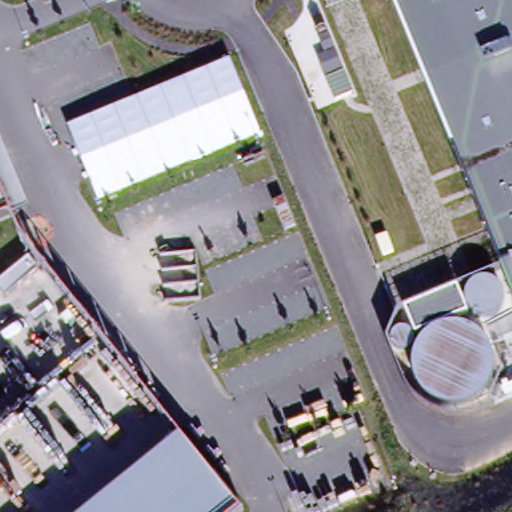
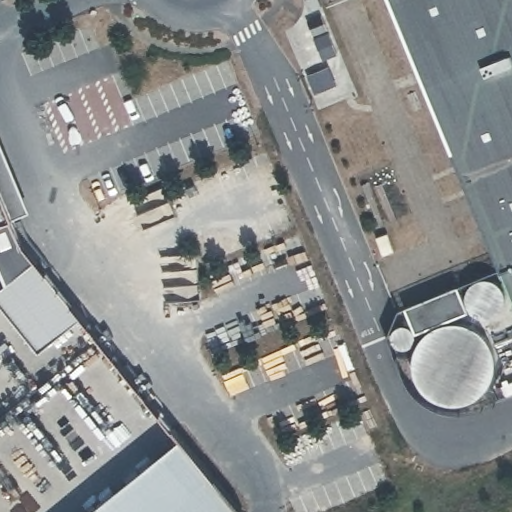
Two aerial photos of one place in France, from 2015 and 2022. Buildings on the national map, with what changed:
unchanged [(512,297),(393,0),(512,0),(512,297)]
new [(67,124),(230,57),(260,132),(98,200),(67,124)]
unchanged [(8,216),(0,220),(0,135),(29,208),(8,216)]
new [(39,348),(0,302),(0,286),(6,281),(0,265),(0,220),(9,217),(21,240),(35,260),(81,316),(39,348)]
unchanged [(457,283),(468,310),(415,332),(404,305),(457,283)]
unchanged [(241,512),(90,512),(182,437),(242,510),(241,512)]

